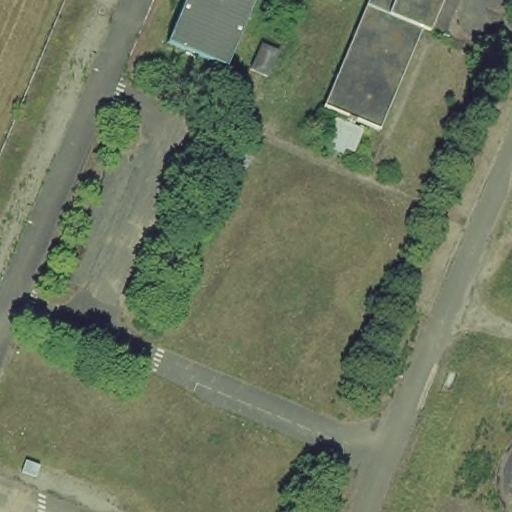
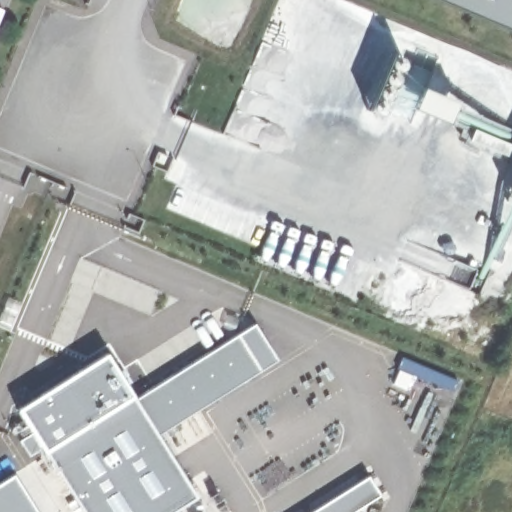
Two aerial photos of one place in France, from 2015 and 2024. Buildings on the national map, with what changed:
demolished [(166,45),(185,0),(255,0),(228,67),(166,45)]
demolished [(349,155),(320,147),(334,113),(318,109),(366,0),(436,0),(379,134),(363,125),(349,155)]
demolished [(340,0),(339,1),(337,0),(340,0)]
new [(436,0),(512,0),(512,32),(436,0)]
new [(106,354),(136,398),(255,325),(277,360),(158,435),(196,498),(174,512),(82,512),(17,410),(106,354)]
new [(37,512),(0,512),(0,484),(14,475),(37,512)]
new [(368,476),(380,495),(353,512),(312,512),(368,476)]

